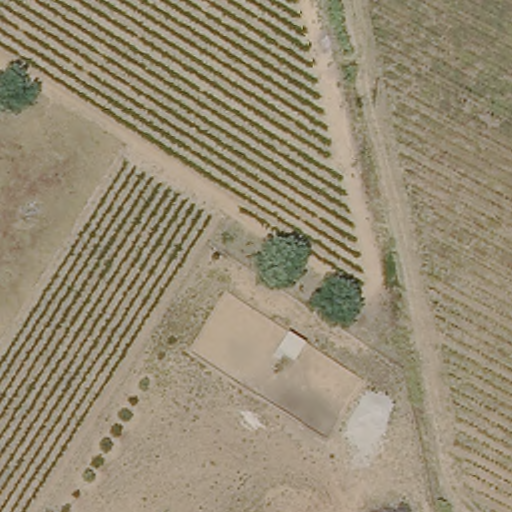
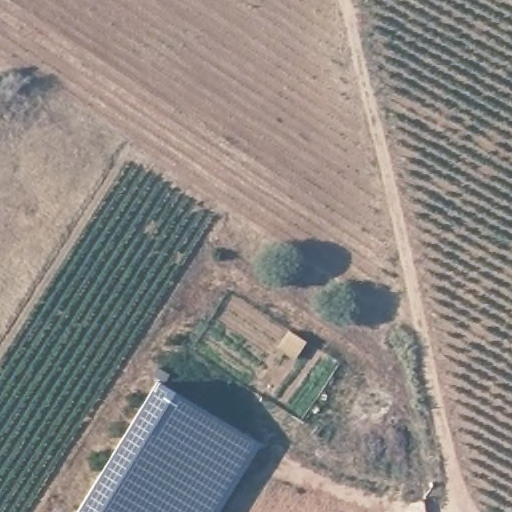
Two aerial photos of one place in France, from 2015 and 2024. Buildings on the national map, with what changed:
unchanged [(281,344),(294,325),(314,338),(303,357),(281,344)]
new [(262,442),(219,512),(77,512),(159,380),(262,442)]

